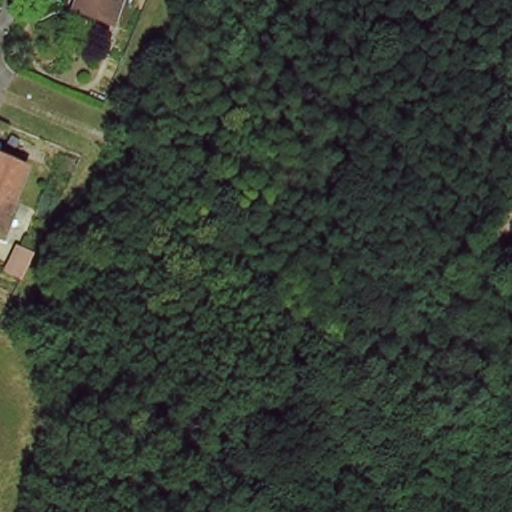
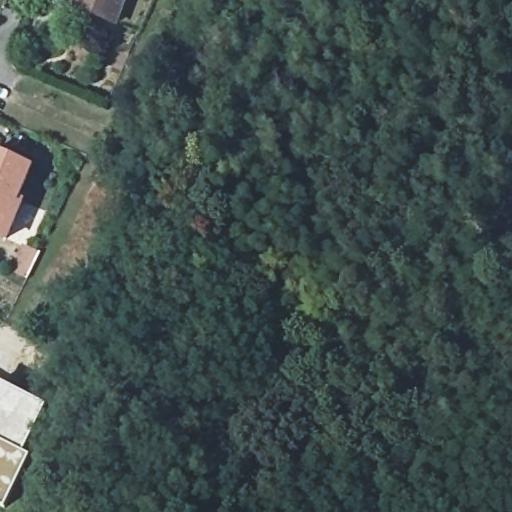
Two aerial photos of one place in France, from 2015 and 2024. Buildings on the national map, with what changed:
unchanged [(83,16),(89,0),(124,0),(114,26),(83,16)]
unchanged [(31,168),(19,195),(26,201),(10,237),(0,232),(0,152),(31,168)]
new [(47,404),(25,451),(31,455),(4,509),(0,507),(0,381),(47,404)]

